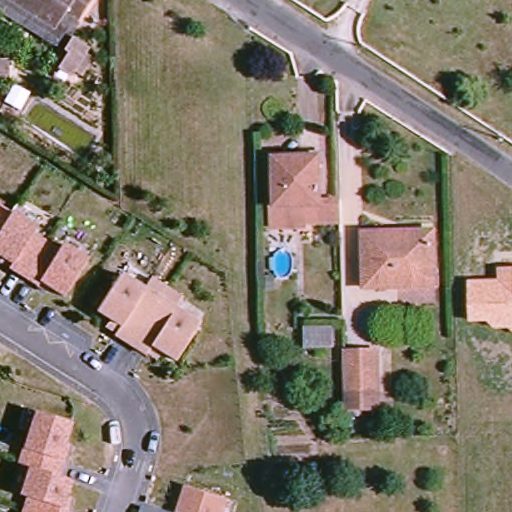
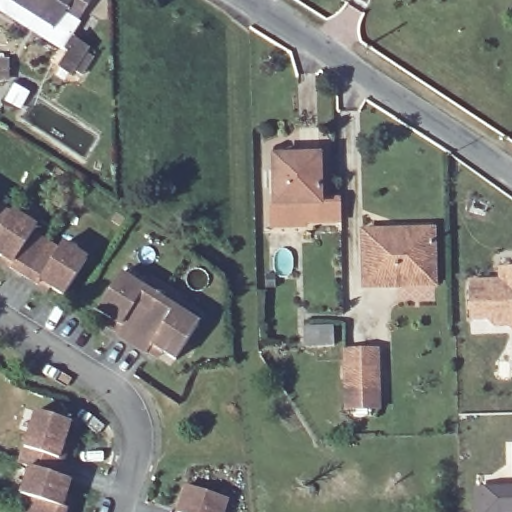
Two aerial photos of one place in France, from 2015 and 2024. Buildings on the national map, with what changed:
unchanged [(78,27),(67,19),(56,35),(2,0),(90,0),(94,3),(78,27)]
unchanged [(67,86),(53,78),(66,59),(63,57),(71,45),(86,55),(67,86)]
unchanged [(5,80),(0,80),(0,60),(4,60),(5,80)]
unchanged [(273,155),(319,156),(319,197),(338,197),(338,222),(304,221),(305,227),(270,227),(268,208),(275,207),(273,155)]
unchanged [(66,297),(0,253),(0,201),(65,242),(91,259),(66,297)]
unchanged [(435,285),(367,285),(365,229),(404,228),(404,233),(435,233),(435,285)]
unchanged [(497,329),(488,319),(470,321),(468,280),(499,279),(498,268),(512,267),(512,330),(510,329),(497,329)]
unchanged [(176,362),(98,312),(124,273),(201,322),(176,362)]
unchanged [(334,341),(303,340),(304,324),(334,325),(334,341)]
unchanged [(376,402),(348,401),(348,363),(376,364),(376,402)]
unchanged [(22,493),(31,466),(35,455),(23,449),(38,409),(73,424),(64,456),(67,460),(59,478),(73,483),(65,506),(70,511),(69,512),(15,512),(22,493)]
unchanged [(230,499),(226,512),(181,512),(177,510),(186,484),(230,499)]
new [(512,512),(474,512),(473,489),(512,487),(512,512)]

